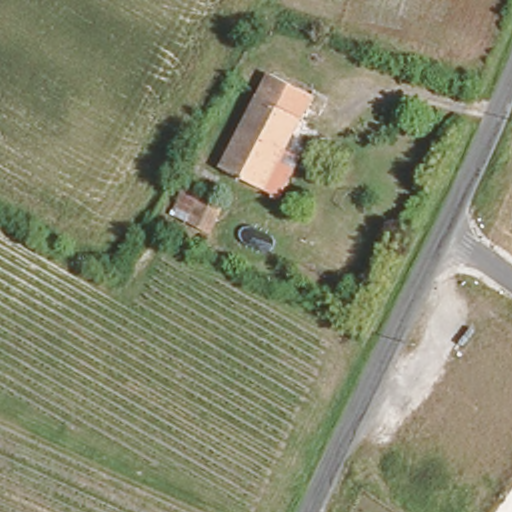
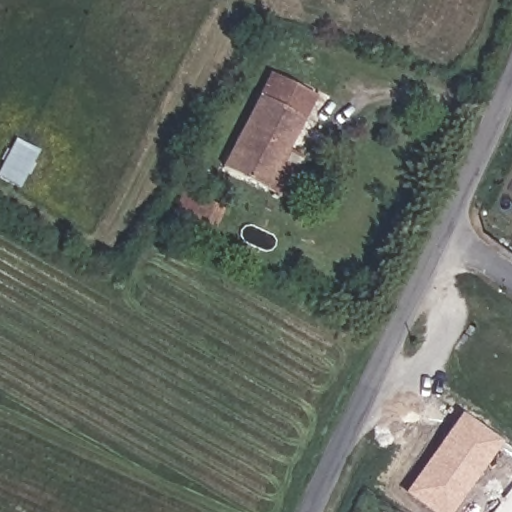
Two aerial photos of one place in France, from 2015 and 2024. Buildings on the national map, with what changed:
unchanged [(314,92),(286,144),(302,151),(281,191),(219,165),(272,69),(314,92)]
unchanged [(212,235),(195,225),(196,223),(175,213),(186,190),(223,209),(212,235)]
new [(432,512),(405,493),(460,413),(502,443),(451,512),(432,512)]

